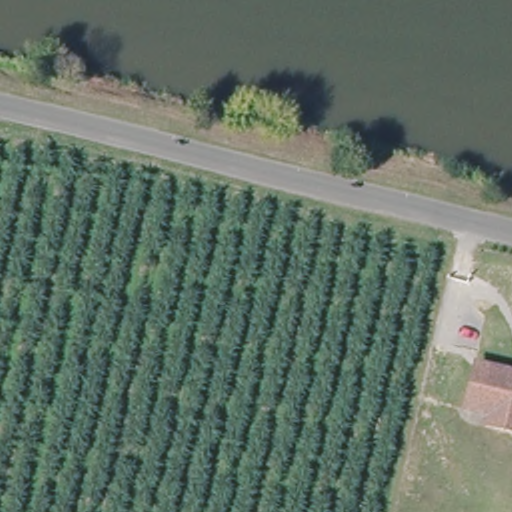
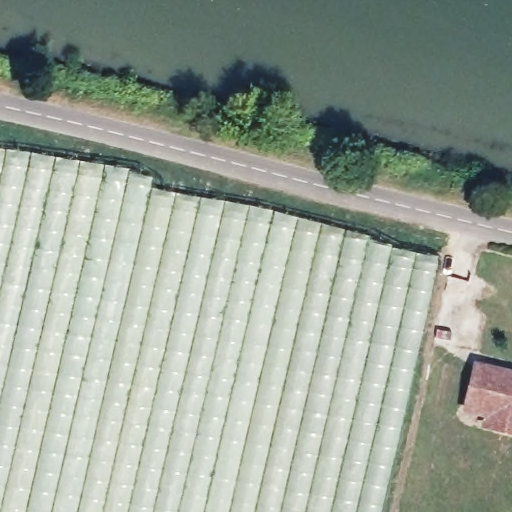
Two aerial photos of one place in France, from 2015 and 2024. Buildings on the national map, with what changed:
new [(381,512),(0,512),(0,149),(128,169),(154,177),(151,189),(257,207),(440,256),(381,512)]
unchanged [(483,412),(461,407),(472,362),(512,372),(512,431),(481,423),(483,412)]

